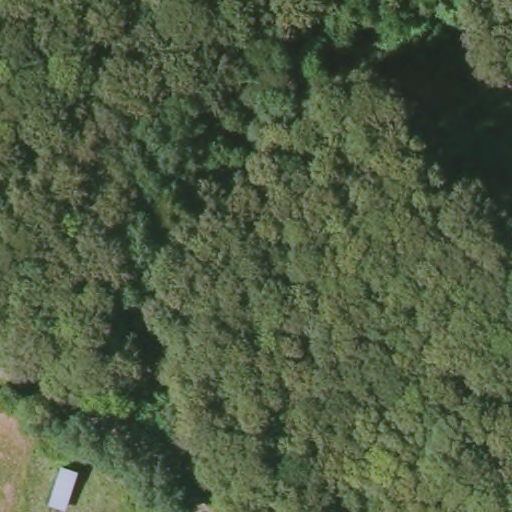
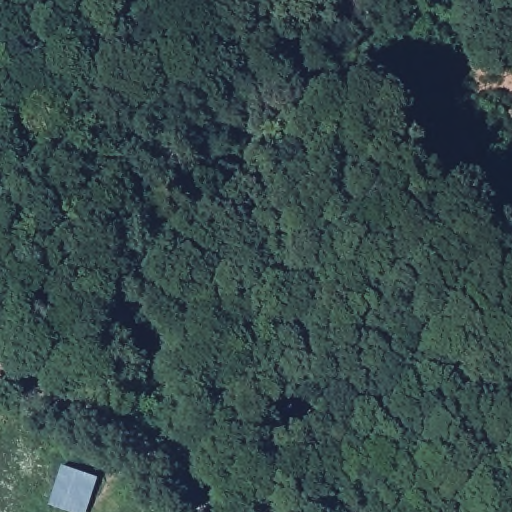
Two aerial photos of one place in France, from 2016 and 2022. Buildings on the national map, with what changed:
unchanged [(55,503),(66,467),(82,473),(70,507),(55,503)]

